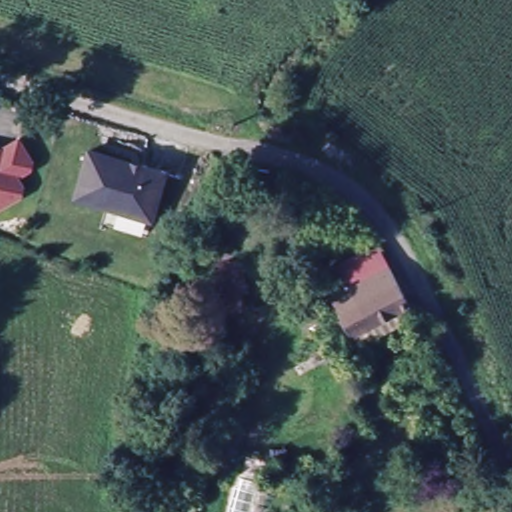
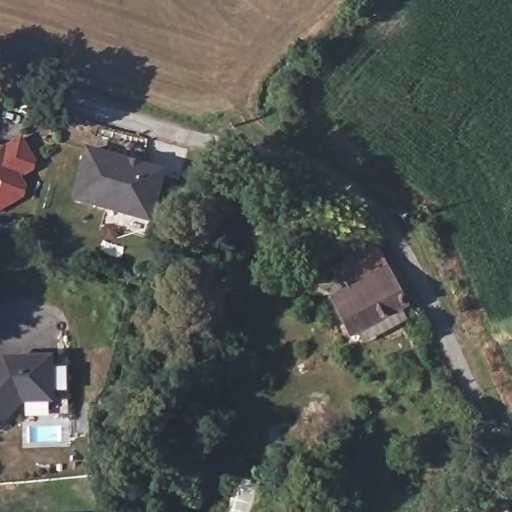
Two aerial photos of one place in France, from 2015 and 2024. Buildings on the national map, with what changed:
unchanged [(37,157),(36,164),(21,173),(29,184),(28,191),(11,202),(0,209),(0,148),(21,134),(37,157)]
unchanged [(158,216),(81,196),(94,148),(170,168),(158,216)]
unchanged [(291,223),(310,234),(296,257),(277,247),(291,223)]
unchanged [(410,311),(354,338),(335,299),(345,294),(336,274),(380,252),(410,311)]
unchanged [(245,312),(223,313),(219,261),(241,259),(245,312)]
new [(71,355),(71,397),(26,398),(1,424),(0,423),(0,363),(8,355),(71,355)]

